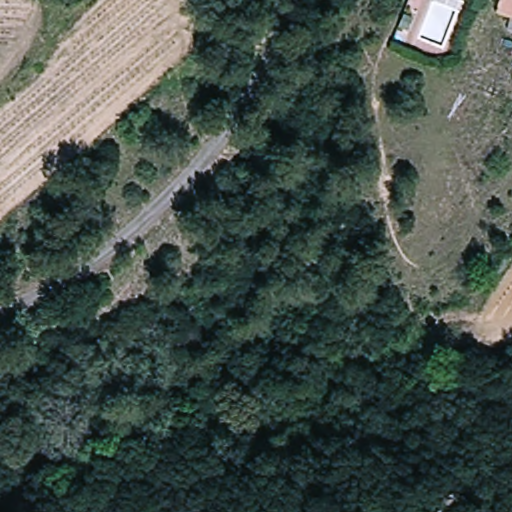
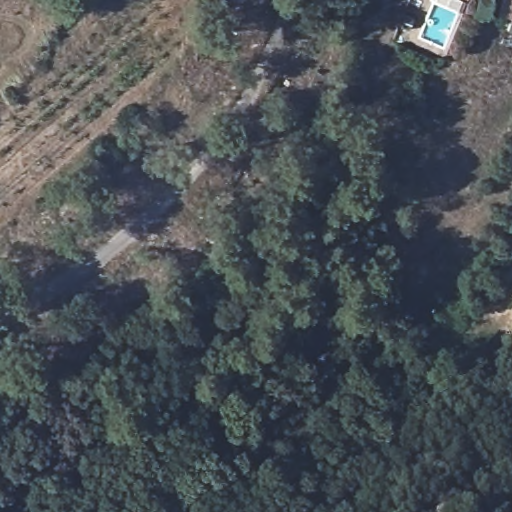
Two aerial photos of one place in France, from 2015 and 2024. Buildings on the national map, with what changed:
unchanged [(499,18),(506,0),(512,0),(512,23),(499,18)]

